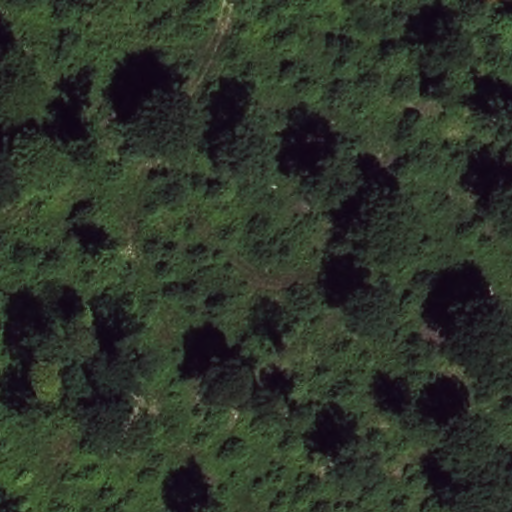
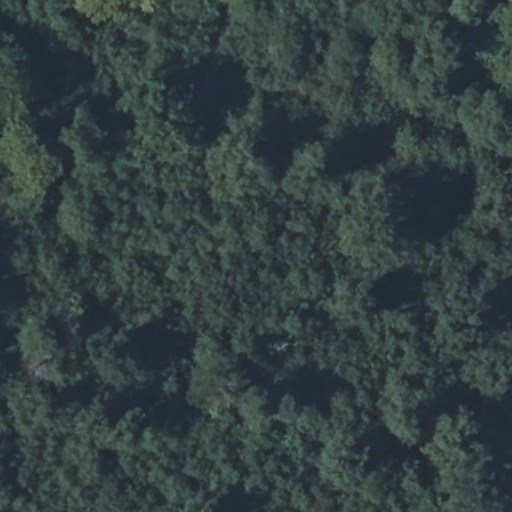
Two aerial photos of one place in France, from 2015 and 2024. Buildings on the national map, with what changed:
[]

